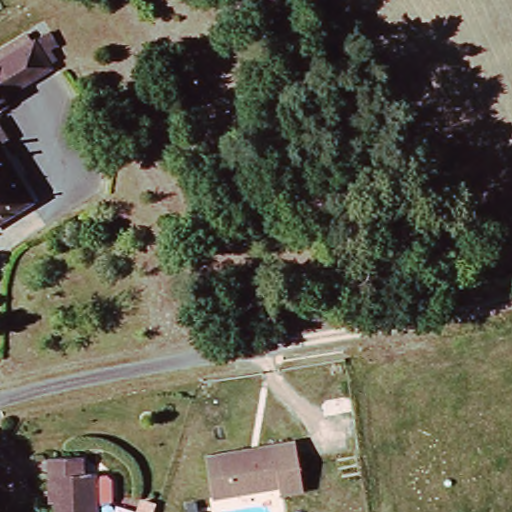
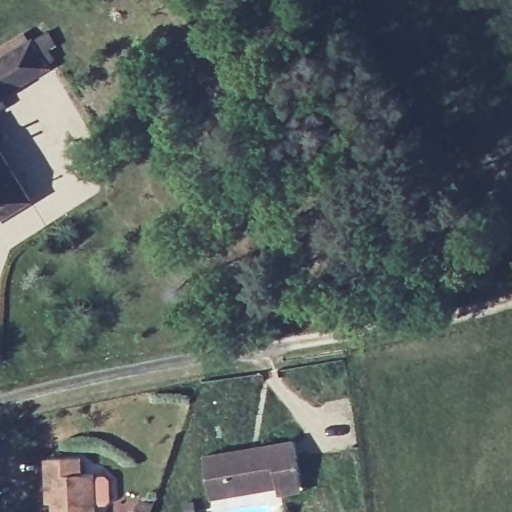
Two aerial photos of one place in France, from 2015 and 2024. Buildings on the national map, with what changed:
unchanged [(0,64),(31,44),(46,65),(0,95),(0,64)]
unchanged [(1,230),(0,231),(0,141),(40,207),(1,230)]
unchanged [(295,442),(304,491),(282,493),(281,486),(217,498),(210,455),(295,442)]
unchanged [(38,460),(84,457),(90,512),(48,512),(47,505),(41,505),(41,495),(38,460)]

